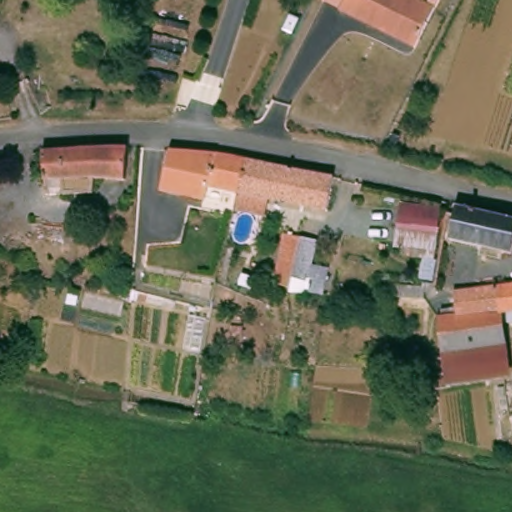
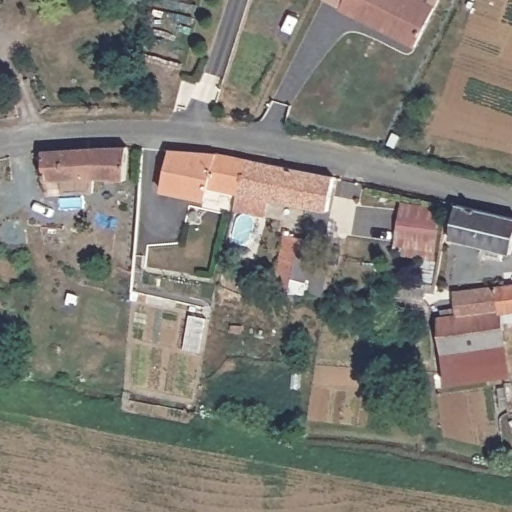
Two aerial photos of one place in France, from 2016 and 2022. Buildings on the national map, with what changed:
unchanged [(428,5),(407,45),(333,9),(338,0),(417,0),(428,5)]
unchanged [(56,145),(119,144),(117,176),(86,175),(85,192),(56,192),(56,176),(36,177),(36,150),(56,145)]
unchanged [(170,147),(214,151),(236,156),(230,188),(205,183),(204,191),(161,186),(162,147),(170,147)]
unchanged [(236,156),(272,163),(325,173),(320,206),(230,188),(236,156)]
unchanged [(512,231),(507,249),(447,235),(453,209),(455,202),(512,215),(512,231)]
unchanged [(430,247),(396,246),(397,204),(432,205),(430,247)]
unchanged [(293,275),(313,276),(313,290),(292,289),(292,287),(275,282),(287,232),(303,235),(293,275)]
unchanged [(436,285),(435,294),(425,294),(425,300),(385,296),(385,284),(423,286),(423,283),(425,283),(435,284),(436,285)]
unchanged [(438,318),(457,316),(455,292),(512,285),(512,311),(501,312),(504,345),(442,351),(438,318)]
unchanged [(504,345),(508,380),(445,384),(442,351),(504,345)]

